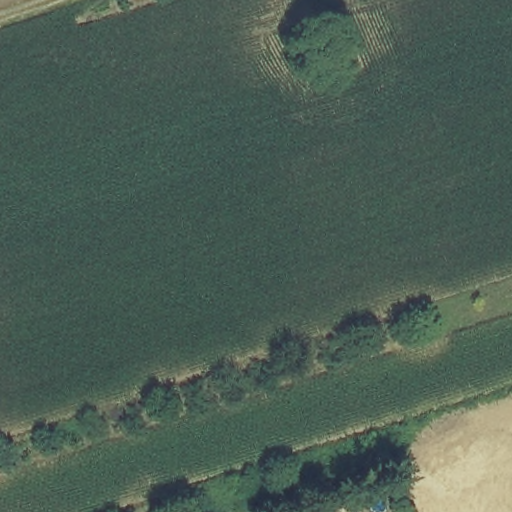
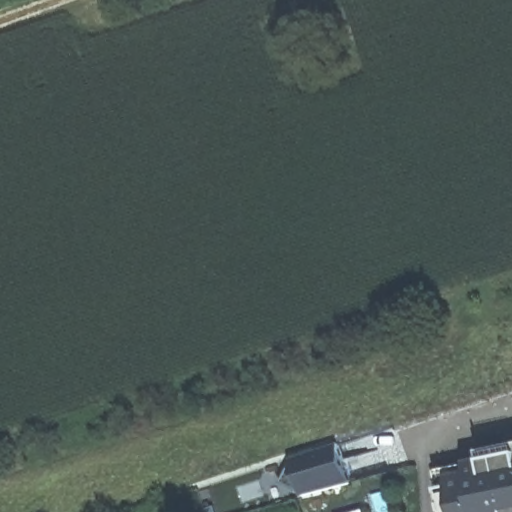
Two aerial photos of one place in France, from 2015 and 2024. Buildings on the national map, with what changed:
new [(337,443),(350,483),(302,496),(290,456),(337,443)]
new [(479,450),(499,446),(501,455),(512,454),(512,512),(442,512),(434,470),(465,464),(479,450)]

